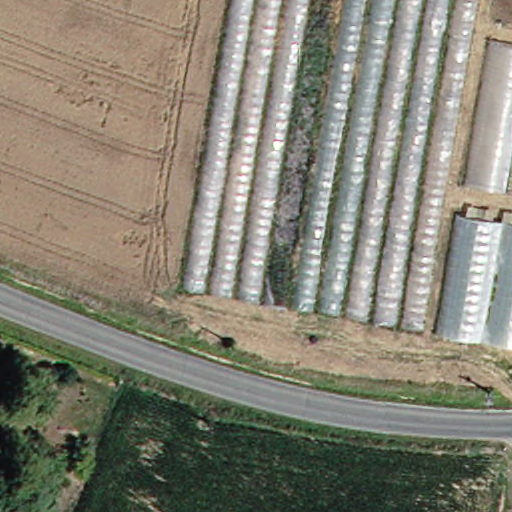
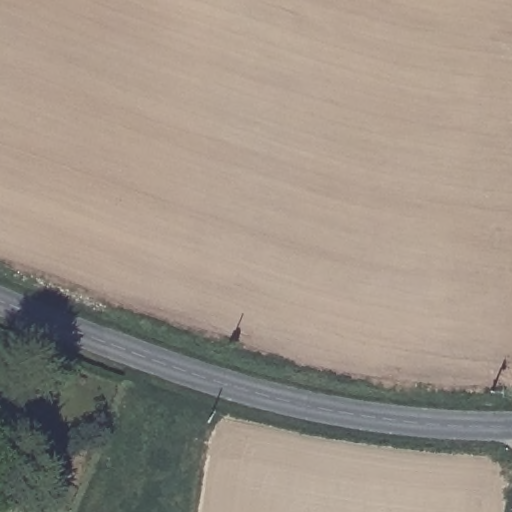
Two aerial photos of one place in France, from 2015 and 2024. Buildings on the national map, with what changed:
demolished [(231,0),(479,0),(424,330),(181,287),(231,0)]
demolished [(512,346),(436,333),(488,39),(512,43),(512,346)]

